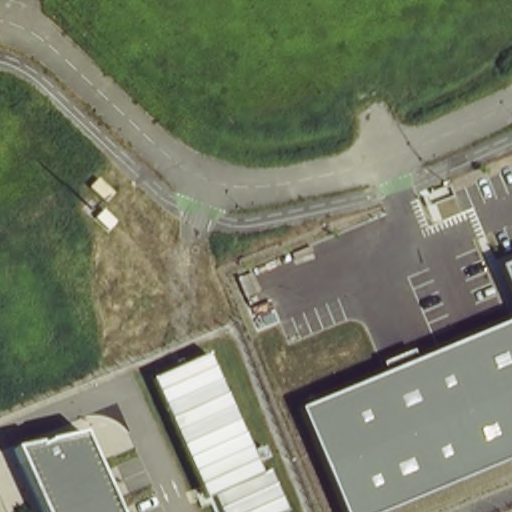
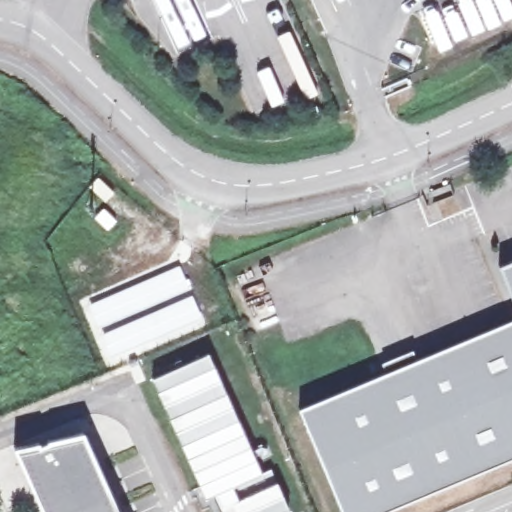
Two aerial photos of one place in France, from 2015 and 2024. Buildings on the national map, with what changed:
new [(179,263),(191,290),(101,333),(87,303),(179,263)]
unchanged [(498,269),(512,263),(512,302),(498,269)]
new [(191,290),(203,318),(110,357),(101,333),(191,290)]
unchanged [(298,409),(384,373),(380,364),(410,351),(416,361),(512,320),(512,458),(384,512),(342,512),(298,409)]
unchanged [(281,512),(221,512),(213,496),(205,499),(151,380),(207,355),(261,474),(269,470),(286,509),(281,512)]
unchanged [(13,443),(38,438),(40,440),(47,437),(47,436),(82,427),(95,455),(89,458),(98,479),(105,477),(121,512),(45,512),(13,443)]

